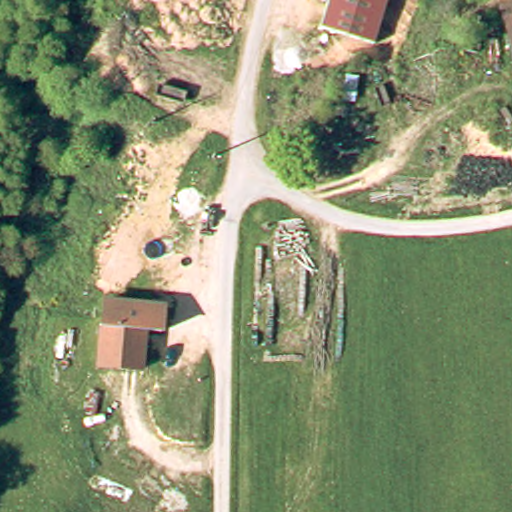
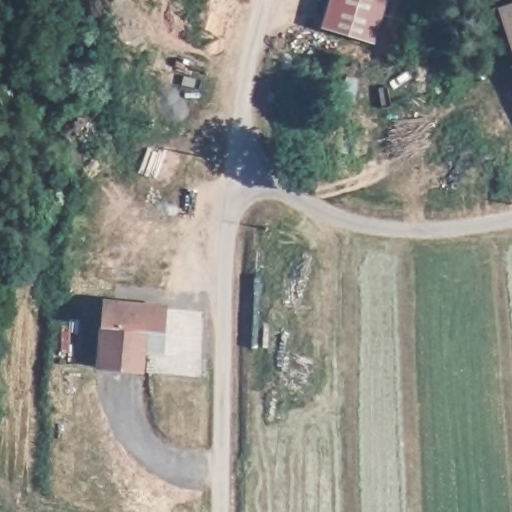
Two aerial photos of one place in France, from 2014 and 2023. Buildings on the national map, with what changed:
unchanged [(375,41),(322,26),(330,0),(386,0),(375,41)]
unchanged [(510,46),(504,25),(500,11),(512,7),(512,54),(510,46)]
unchanged [(96,363),(101,300),(143,304),(158,306),(155,330),(140,328),(135,366),(96,363)]

